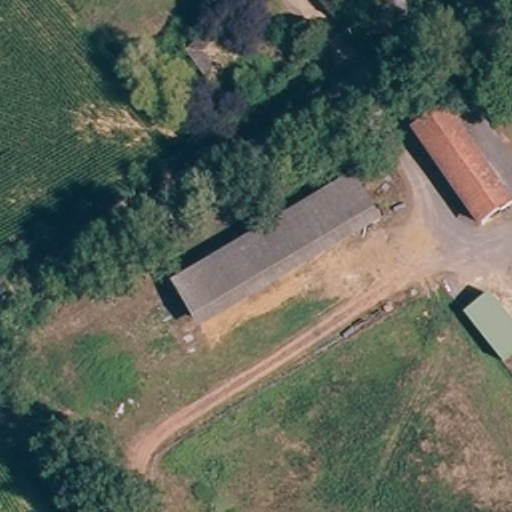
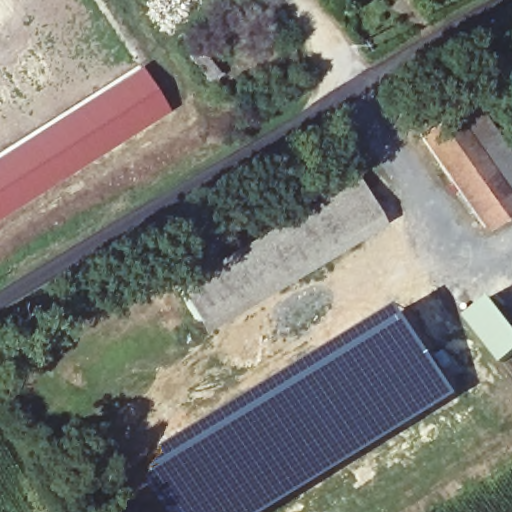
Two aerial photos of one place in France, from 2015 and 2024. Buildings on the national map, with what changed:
new [(170,112),(0,219),(0,158),(142,68),(170,112)]
unchanged [(512,163),(512,200),(479,223),(415,130),(465,97),(512,163)]
unchanged [(345,169),(377,216),(202,335),(171,289),(345,169)]
unchanged [(490,299),(512,330),(512,359),(501,367),(490,352),(465,318),(490,299)]
new [(406,307),(461,395),(272,512),(174,512),(173,510),(148,466),(297,372),(406,307)]

